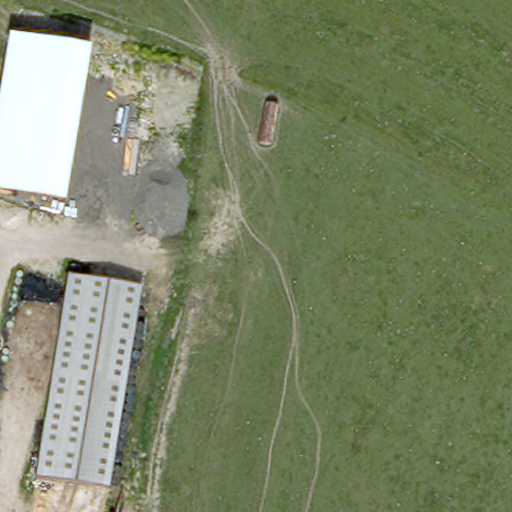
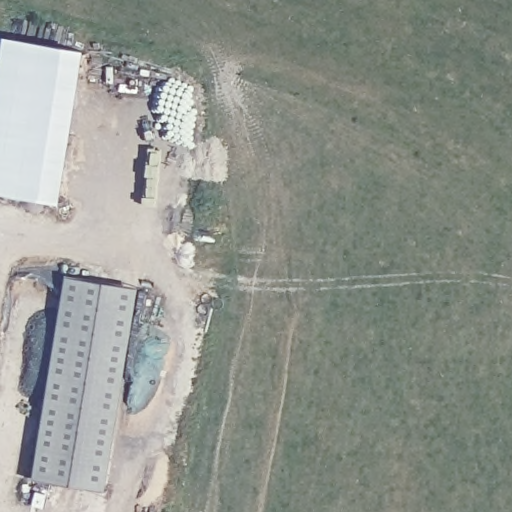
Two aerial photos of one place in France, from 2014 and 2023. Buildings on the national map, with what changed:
unchanged [(90,49),(65,203),(0,191),(0,93),(10,36),(90,49)]
unchanged [(37,477),(68,273),(121,282),(141,285),(110,488),(90,485),(37,477)]

